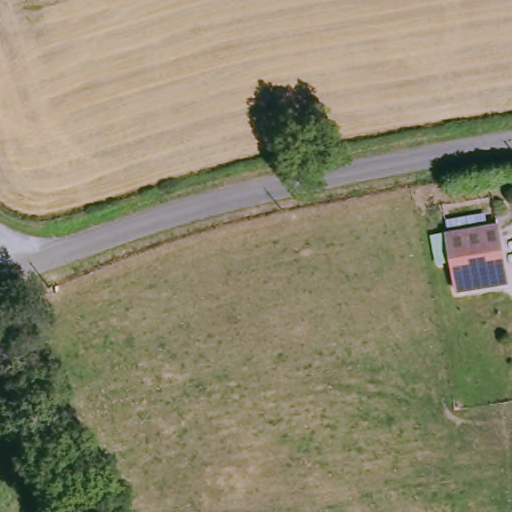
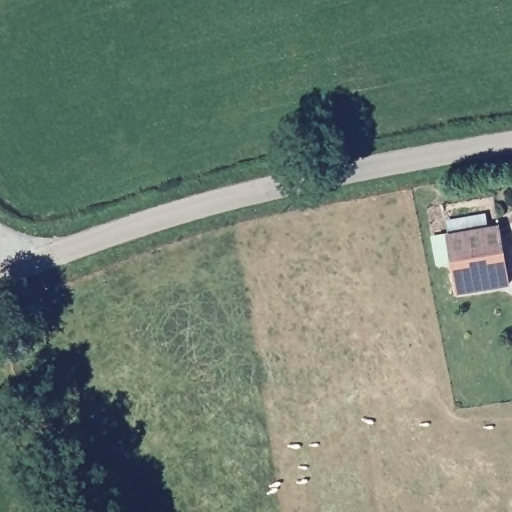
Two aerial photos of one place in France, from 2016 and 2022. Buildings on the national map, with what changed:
unchanged [(495,204),(505,262),(454,270),(448,238),(445,212),(495,204)]

